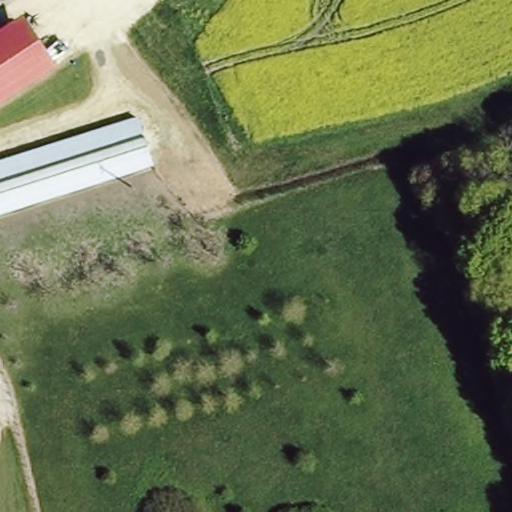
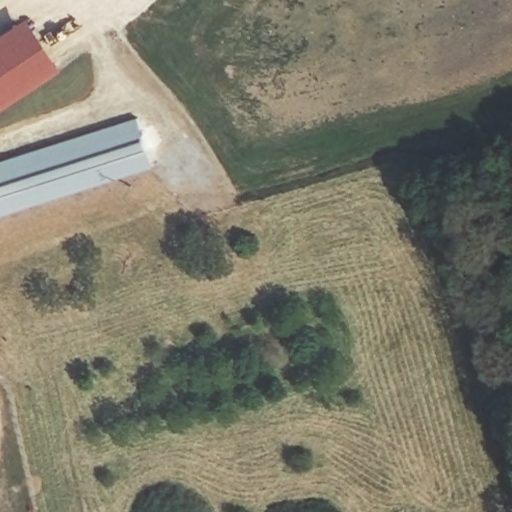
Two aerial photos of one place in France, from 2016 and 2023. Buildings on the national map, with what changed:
unchanged [(58,62),(0,100),(0,31),(27,14),(58,62)]
unchanged [(151,169),(141,171),(0,212),(0,155),(135,115),(151,169)]

